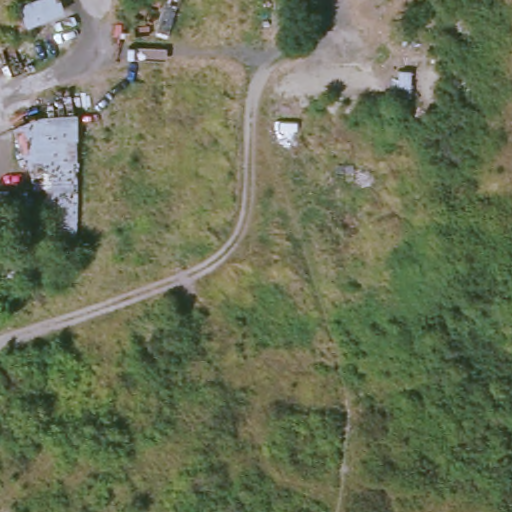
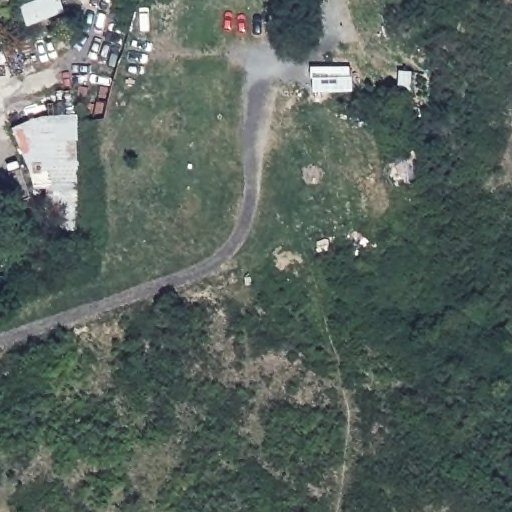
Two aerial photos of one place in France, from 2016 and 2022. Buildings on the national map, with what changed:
unchanged [(65,0),(68,19),(23,32),(20,5),(37,0),(65,0)]
unchanged [(40,116),(80,116),(83,186),(82,247),(60,250),(60,279),(10,278),(10,219),(42,218),(44,191),(20,153),(10,131),(40,116)]

